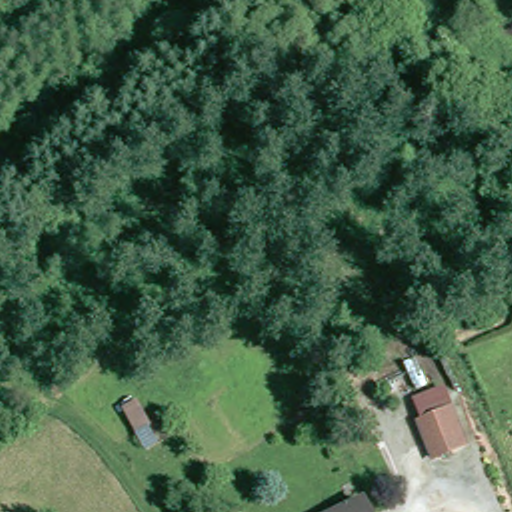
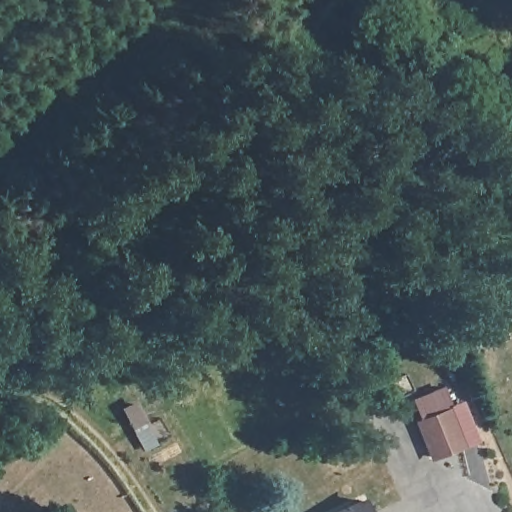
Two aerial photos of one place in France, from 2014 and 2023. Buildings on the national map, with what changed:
unchanged [(444,383),(469,448),(435,461),(413,396),(444,383)]
unchanged [(372,512),(315,512),(364,492),(372,512)]

